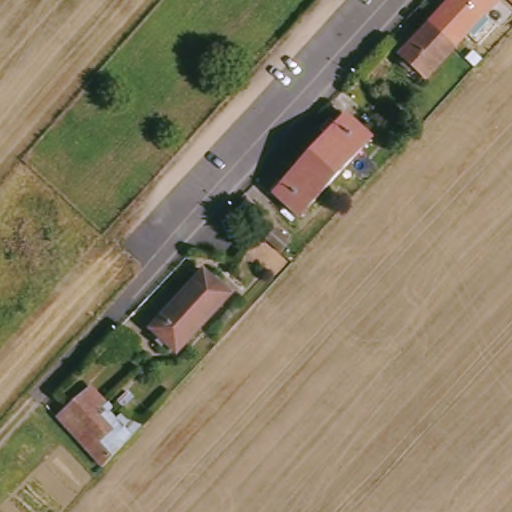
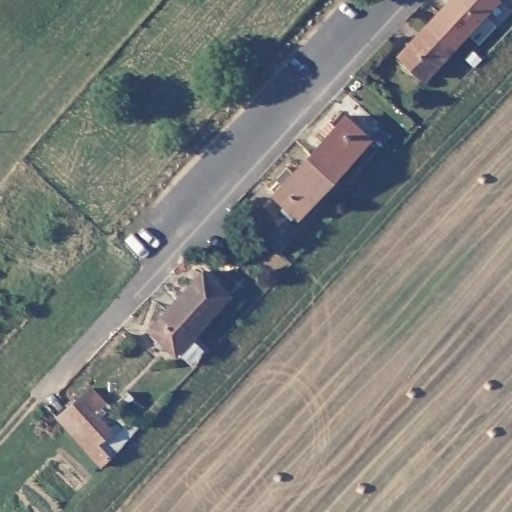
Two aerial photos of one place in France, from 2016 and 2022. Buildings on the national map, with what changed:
unchanged [(439,0),(474,0),(480,6),(451,35),(427,12),(439,0)]
unchanged [(451,35),(423,65),(399,42),(427,12),(451,35)]
unchanged [(338,112),(364,137),(327,175),(302,151),(338,112)]
unchanged [(293,210),(267,187),(302,151),(327,175),(293,210)]
unchanged [(197,267),(225,292),(199,319),(172,294),(197,267)]
unchanged [(199,319),(169,351),(142,325),(172,294),(199,319)]
unchanged [(95,465),(48,416),(82,383),(107,402),(98,412),(110,429),(97,439),(109,450),(95,465)]

